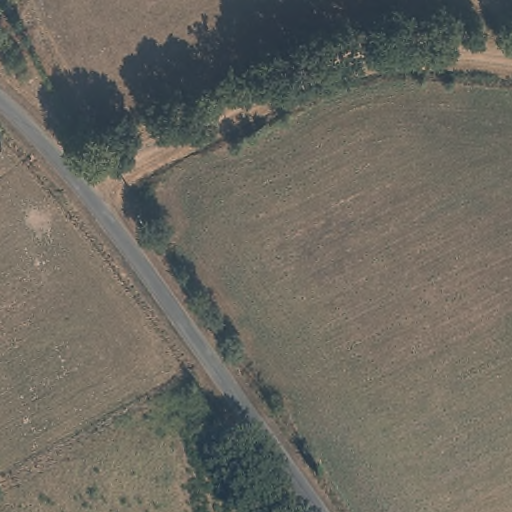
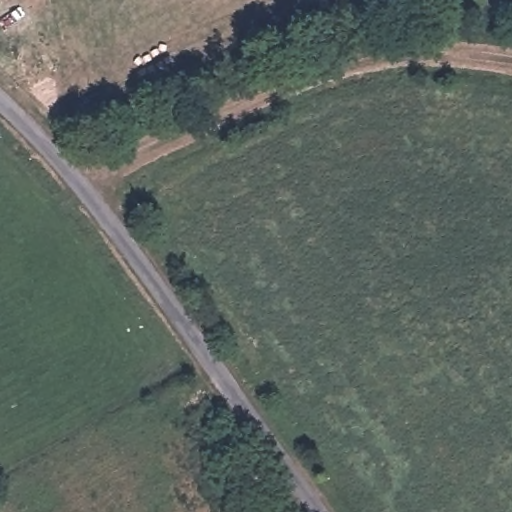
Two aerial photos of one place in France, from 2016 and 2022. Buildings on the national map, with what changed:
[]

